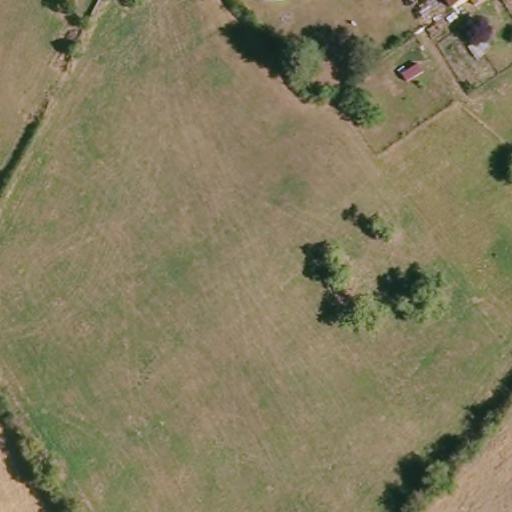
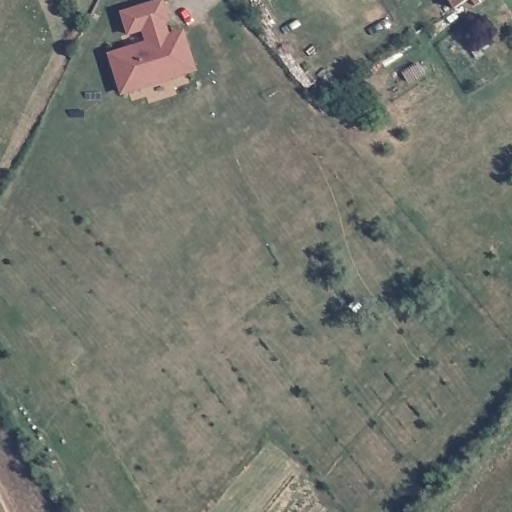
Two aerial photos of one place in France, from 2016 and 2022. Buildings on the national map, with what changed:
new [(172,17),(132,31),(125,10),(155,0),(166,0),(172,17)]
unchanged [(447,9),(442,0),(460,0),(447,9)]
new [(152,40),(147,26),(167,19),(172,33),(152,40)]
new [(198,65),(128,90),(115,53),(152,40),(185,29),(198,65)]

